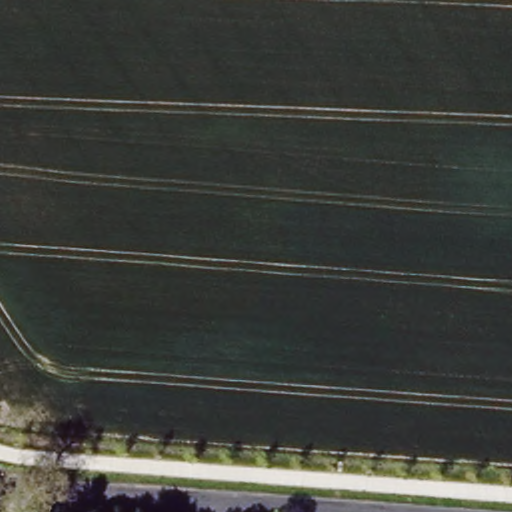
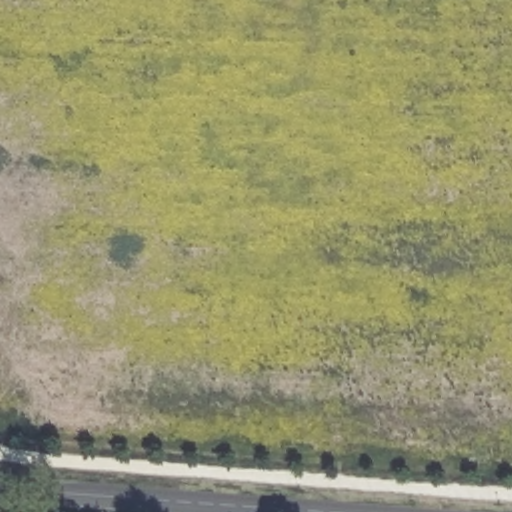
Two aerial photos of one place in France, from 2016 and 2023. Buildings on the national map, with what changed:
[]

